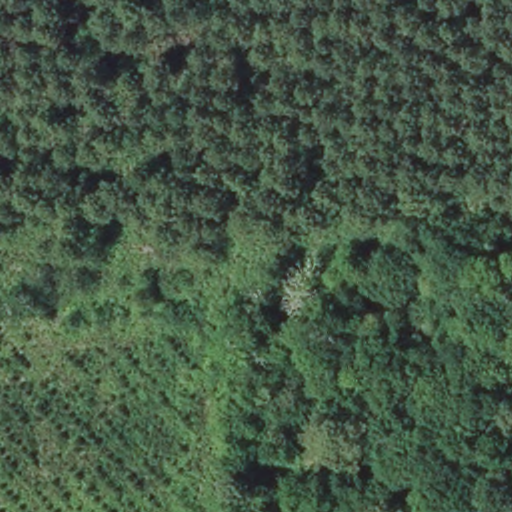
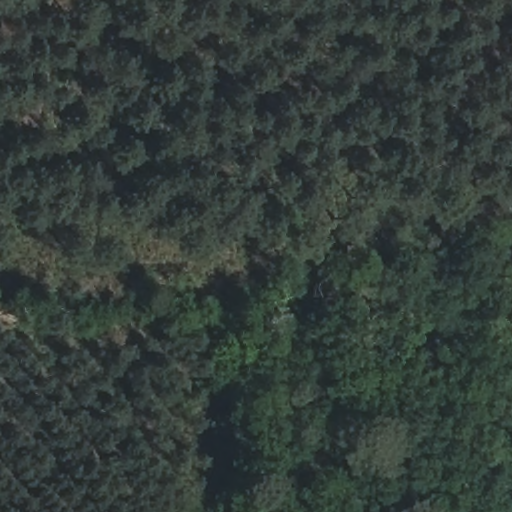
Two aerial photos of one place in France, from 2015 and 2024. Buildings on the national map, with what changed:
[]

